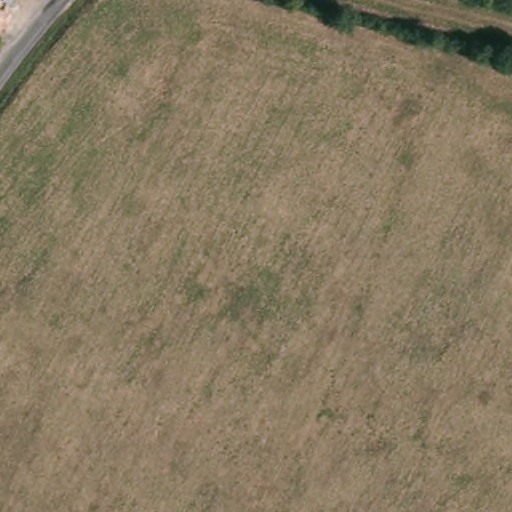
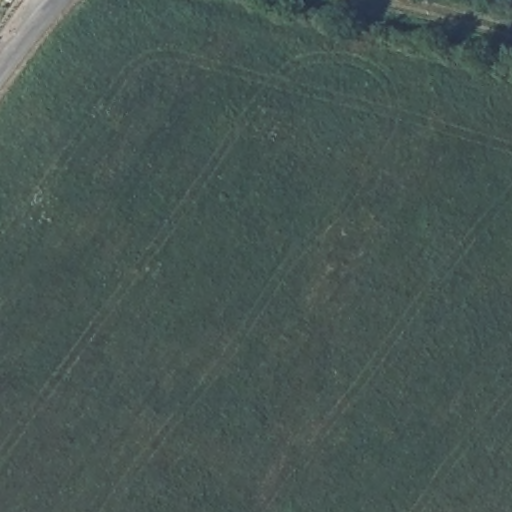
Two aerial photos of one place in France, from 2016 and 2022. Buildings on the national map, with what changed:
[]

